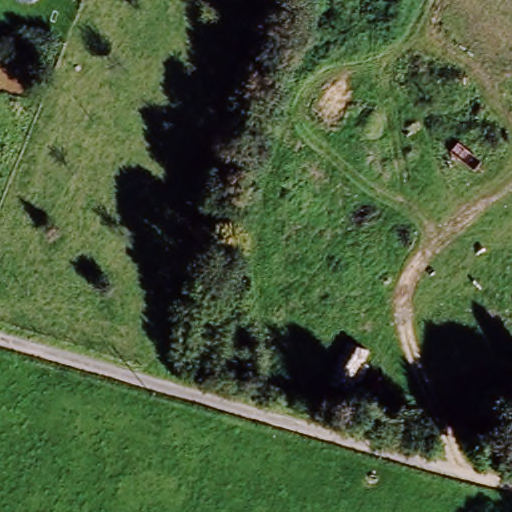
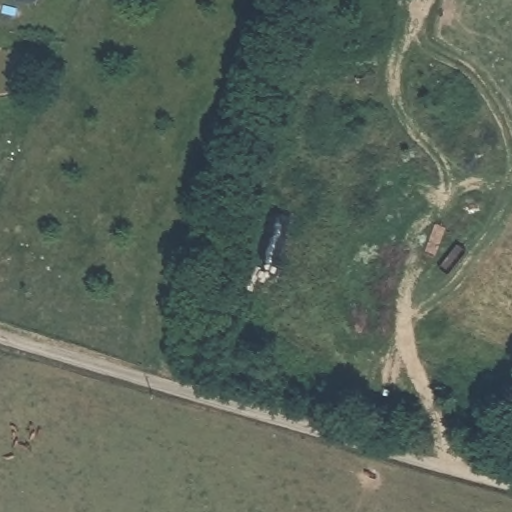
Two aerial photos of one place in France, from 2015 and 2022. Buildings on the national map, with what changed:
unchanged [(20,0),(43,0),(34,5),(20,0)]

